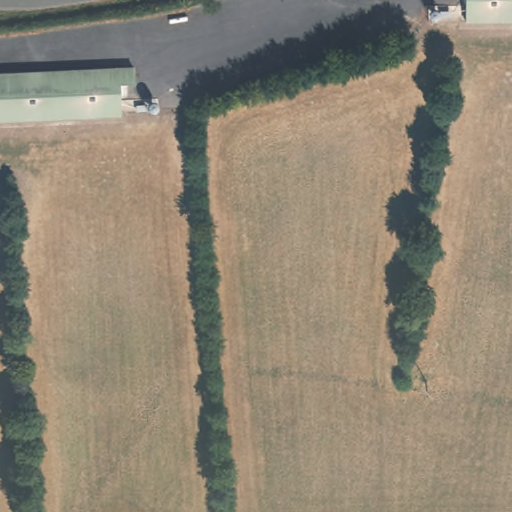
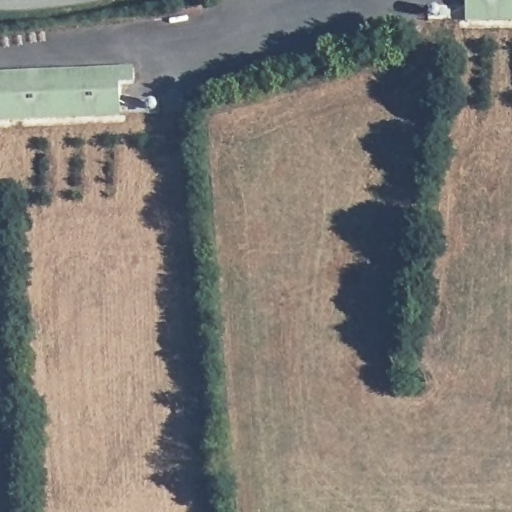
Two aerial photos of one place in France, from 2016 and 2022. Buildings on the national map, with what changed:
unchanged [(512,23),(470,22),(471,0),(512,0),(512,23)]
unchanged [(135,69),(136,93),(114,94),(114,115),(0,119),(0,74),(135,69)]

